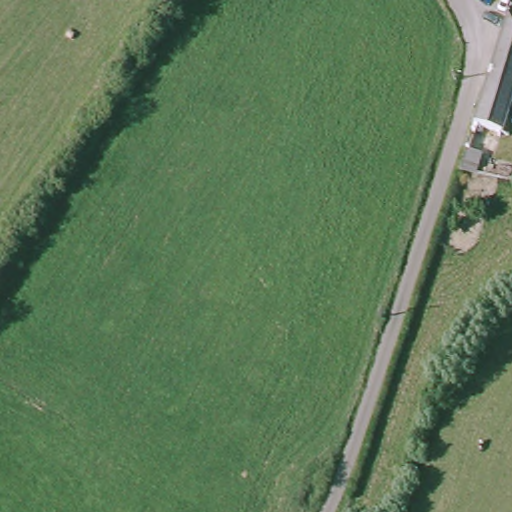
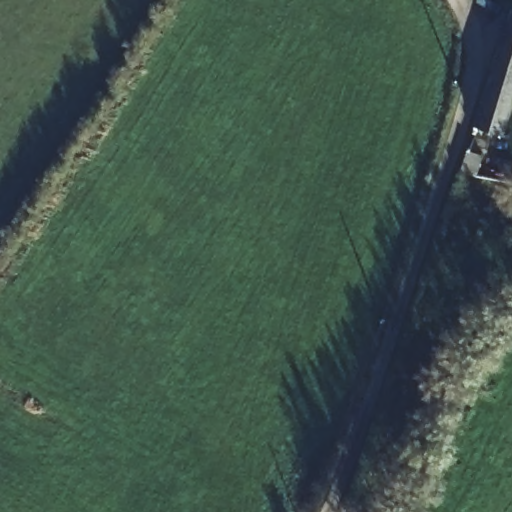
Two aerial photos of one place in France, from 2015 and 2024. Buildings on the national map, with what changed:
unchanged [(512,5),(512,79),(499,126),(504,127),(493,175),(458,168),(508,3),(512,5)]

